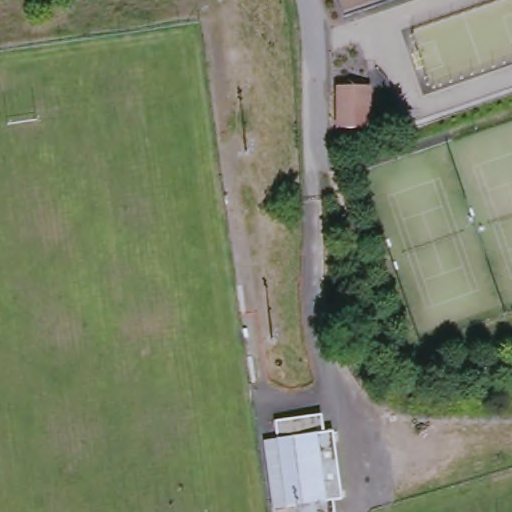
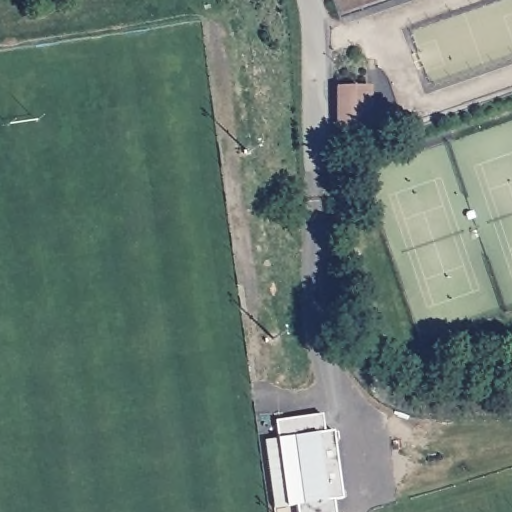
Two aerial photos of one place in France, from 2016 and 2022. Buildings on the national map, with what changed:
unchanged [(343,18),(337,0),(398,0),(343,18)]
unchanged [(374,107),(364,117),(364,128),(342,128),(342,86),(374,86),(374,107)]
unchanged [(277,438),(275,420),(322,414),(324,432),(333,431),(342,499),(334,500),(335,512),(297,512),(296,505),(287,506),(274,508),(264,440),(277,438)]

